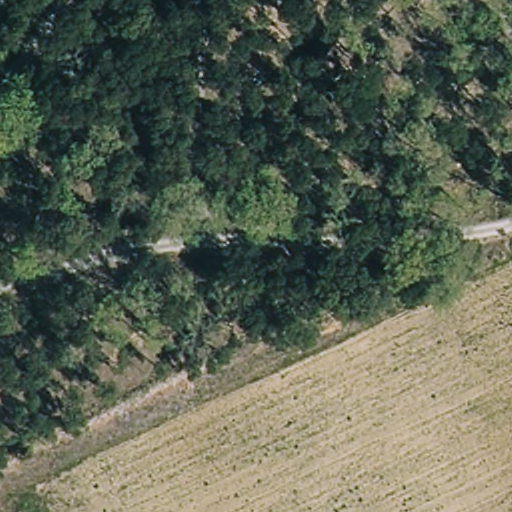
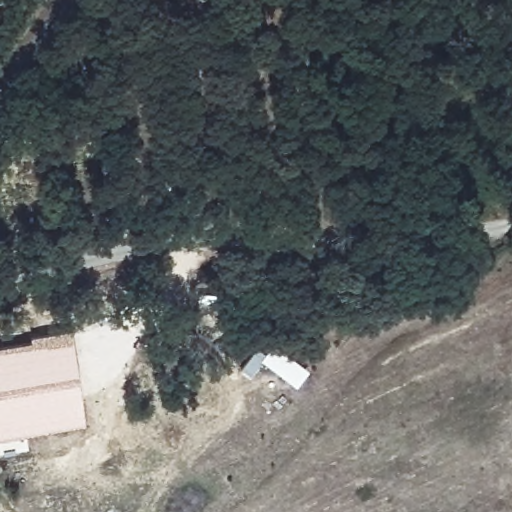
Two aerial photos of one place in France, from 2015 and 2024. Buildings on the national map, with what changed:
new [(0,345),(29,341),(28,336),(69,330),(84,425),(0,437),(0,345)]

